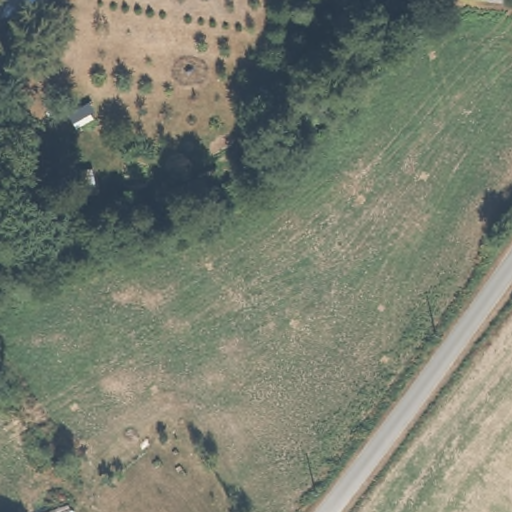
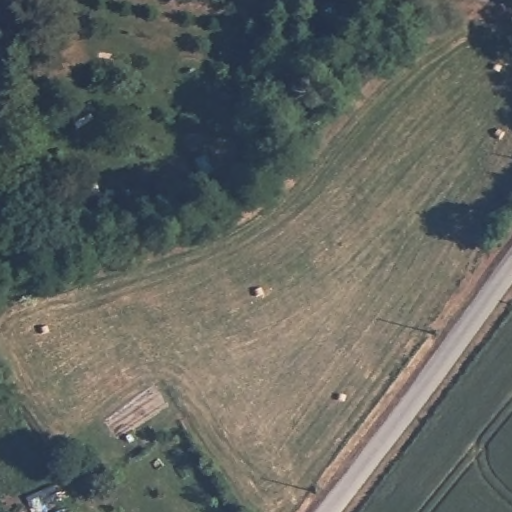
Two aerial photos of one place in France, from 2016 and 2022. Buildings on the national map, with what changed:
unchanged [(81,190),(76,169),(95,163),(100,185),(81,190)]

